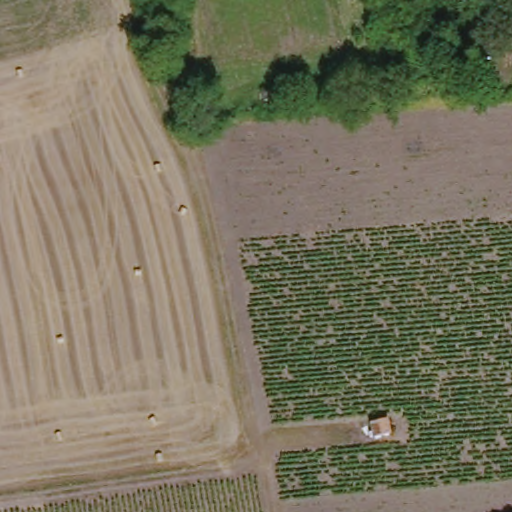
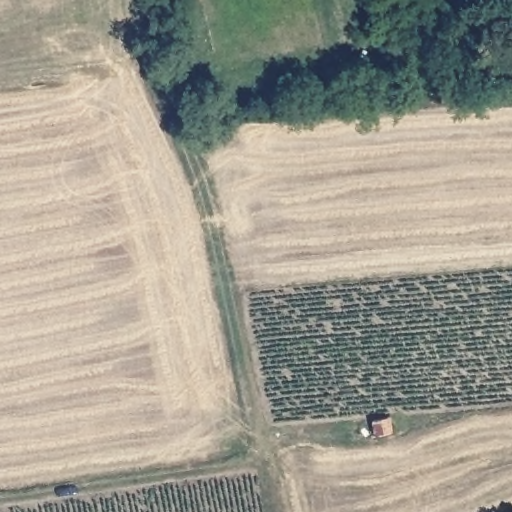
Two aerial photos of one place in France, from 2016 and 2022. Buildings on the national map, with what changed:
unchanged [(401,412),(397,397),(410,393),(414,408),(401,412)]

